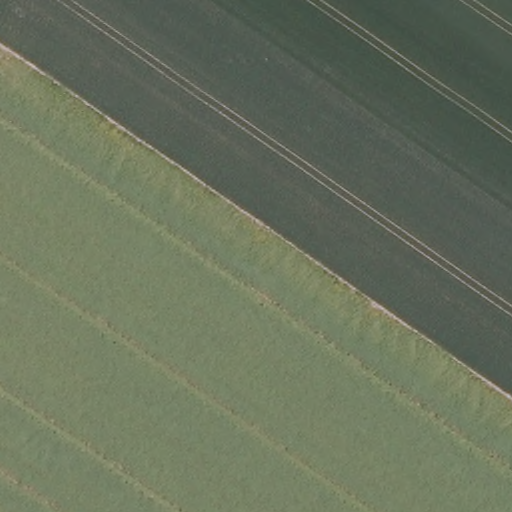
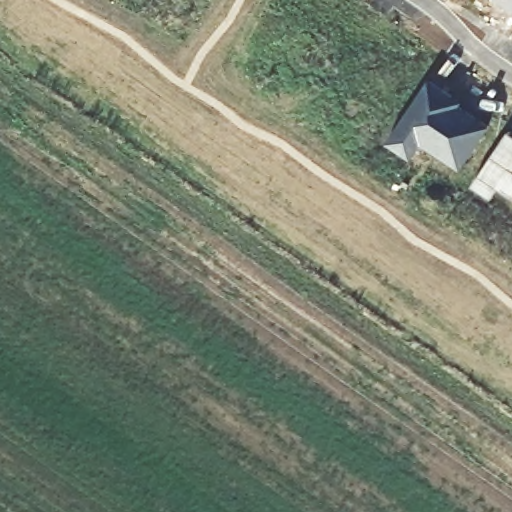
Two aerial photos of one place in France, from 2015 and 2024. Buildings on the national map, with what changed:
new [(512,9),(499,0),(512,0),(512,9)]
new [(462,101),(461,105),(492,124),(460,169),(422,142),(410,160),(386,142),(430,76),(462,101)]
new [(512,194),(500,186),(493,196),(475,184),(510,129),(512,131),(512,194)]

